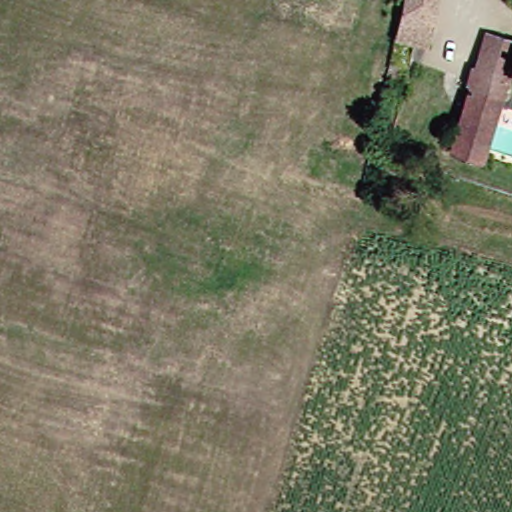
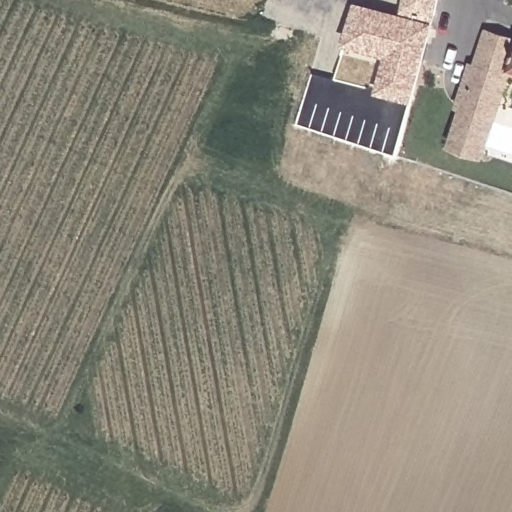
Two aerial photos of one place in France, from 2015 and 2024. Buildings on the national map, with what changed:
new [(383,57),(370,53),(348,47),(345,46),(355,0),(393,10),(383,57)]
unchanged [(385,48),(396,0),(429,0),(415,64),(397,60),(383,57),(385,48)]
unchanged [(480,138),(476,153),(445,143),(481,31),(512,40),(512,71),(504,68),(480,138)]
new [(397,60),(415,64),(406,97),(378,92),(380,85),(337,77),(348,47),(370,53),(383,57),(397,60)]

